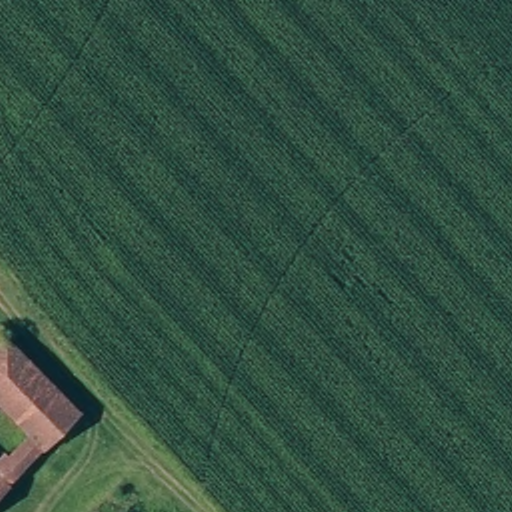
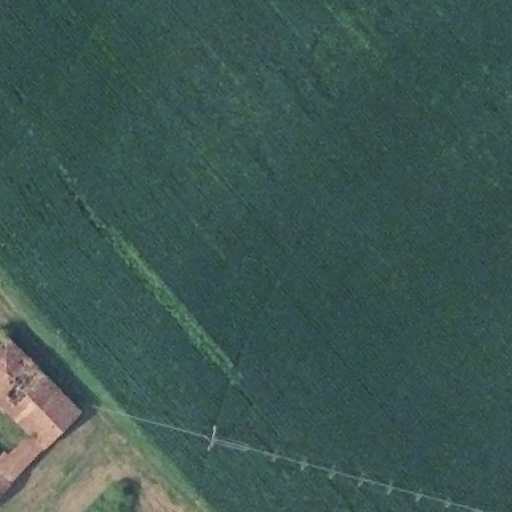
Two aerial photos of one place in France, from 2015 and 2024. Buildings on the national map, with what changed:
unchanged [(85,412),(55,441),(25,410),(0,435),(0,359),(19,341),(85,412)]
unchanged [(0,498),(0,449),(23,475),(0,498)]

